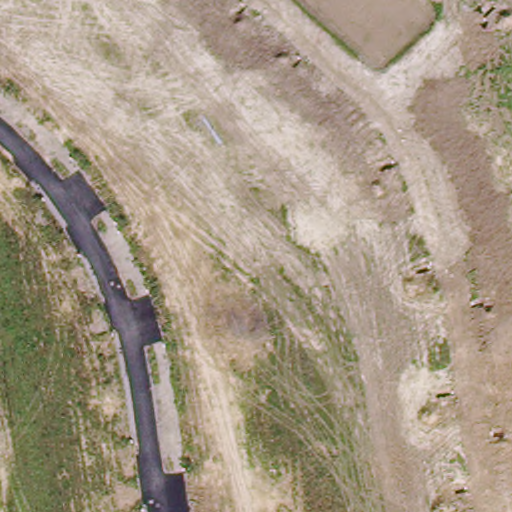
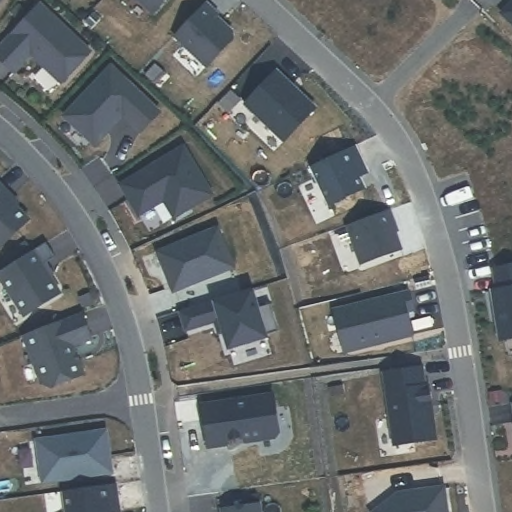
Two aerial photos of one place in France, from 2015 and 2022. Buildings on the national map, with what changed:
new [(152,13),(139,0),(165,0),(152,13)]
new [(231,39),(205,66),(173,35),(204,2),(216,14),(214,16),(231,32),(231,39)]
new [(512,24),(501,13),(512,3),(512,24)]
new [(39,4),(89,51),(60,82),(30,54),(13,72),(0,60),(0,47),(39,4)]
new [(110,65),(159,112),(140,131),(122,114),(93,145),(62,116),(110,65)]
new [(276,71),(314,108),(283,141),(245,104),(276,71)]
new [(182,146),(211,194),(173,217),(163,199),(138,214),(119,184),(182,146)]
new [(352,146),(360,162),(365,173),(356,178),(351,166),(361,189),(326,205),(308,167),(352,146)]
new [(8,192),(18,202),(15,205),(28,219),(0,247),(0,184),(8,192)]
new [(346,224),(387,210),(393,224),(390,226),(400,250),(360,262),(346,224)]
new [(45,242),(54,257),(42,265),(59,292),(23,315),(0,279),(0,271),(45,242)]
new [(412,309),(405,311),(411,335),(356,348),(351,328),(338,332),(332,310),(408,291),(412,309)]
new [(491,294),(512,291),(512,341),(500,343),(491,294)]
new [(81,312),(91,338),(72,345),(83,374),(50,386),(40,382),(22,335),(81,312)]
new [(421,366),(424,385),(427,385),(435,438),(393,444),(383,372),(421,366)]
new [(202,404),(272,396),(277,431),(274,437),(243,441),(243,435),(223,438),(223,443),(206,446),(202,404)]
new [(512,406),(511,402),(512,402),(512,406)]
new [(105,430),(111,472),(41,482),(35,439),(105,430)]
new [(117,501),(107,502),(108,512),(66,512),(63,490),(114,483),(117,501)]
new [(443,487),(447,512),(372,512),(396,493),(443,487)]
new [(259,503),(260,512),(221,512),(220,509),(259,503)]

